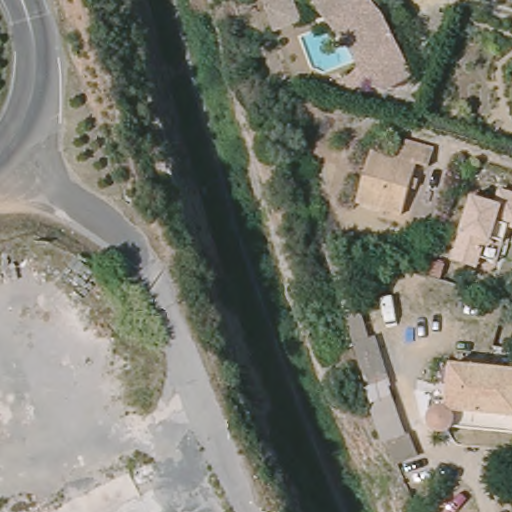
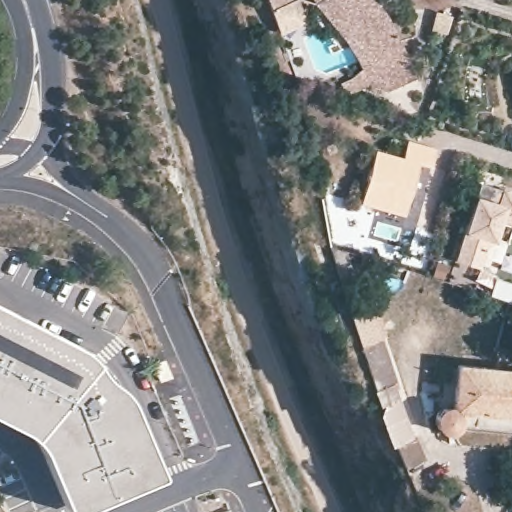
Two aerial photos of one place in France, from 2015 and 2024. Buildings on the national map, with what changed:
unchanged [(266,0),(296,0),(303,25),(280,34),(271,11),(266,0)]
unchanged [(352,34),(351,33),(344,39),(332,24),(315,4),(320,0),(373,0),(380,9),(385,15),(387,18),(415,77),(386,91),(370,86),(358,64),(365,60),(352,34)]
unchanged [(375,146),(402,153),(407,136),(436,144),(430,163),(419,159),(404,211),(360,198),(375,146)]
unchanged [(475,191),(497,198),(502,185),(512,188),(512,221),(505,219),(498,242),(490,239),(482,262),(455,254),(465,224),(475,191)]
new [(75,344),(85,351),(91,359),(97,369),(105,376),(114,383),(123,391),(157,475),(68,512),(65,512),(42,455),(36,442),(25,432),(0,419),(0,307),(75,344)]
unchanged [(418,458),(399,470),(385,445),(347,318),(367,309),(418,458)]
unchanged [(451,431),(447,432),(442,432),(440,430),(436,427),(434,424),(434,419),(434,416),(435,412),(437,410),(441,408),(447,407),(452,408),(455,365),(512,370),(512,434),(455,428),(451,431)]

